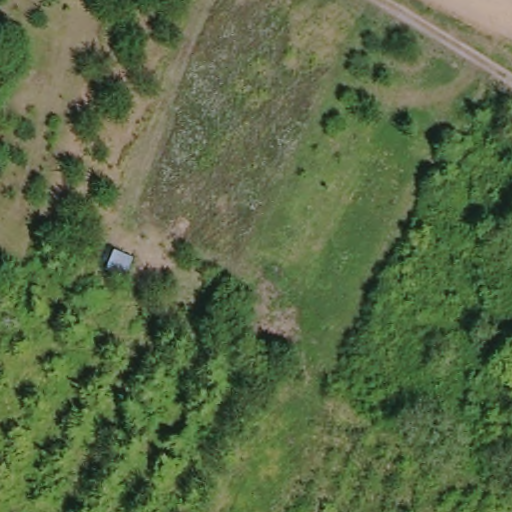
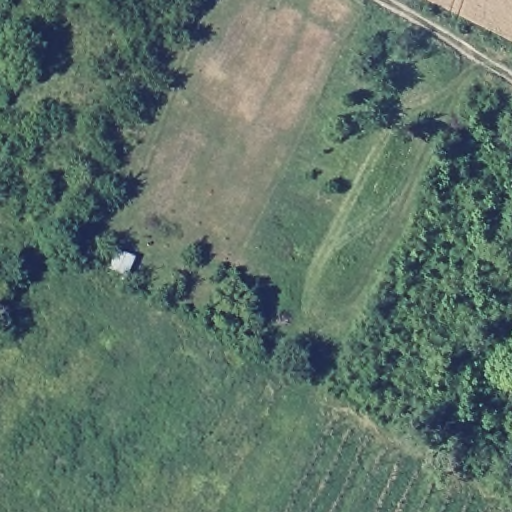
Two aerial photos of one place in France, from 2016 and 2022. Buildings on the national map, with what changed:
unchanged [(125,280),(100,267),(109,247),(132,256),(125,280)]

